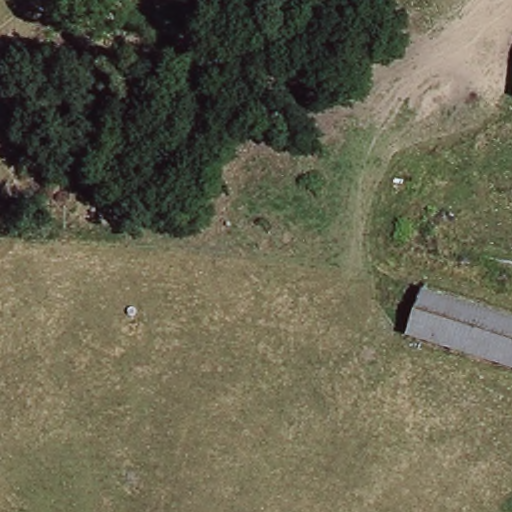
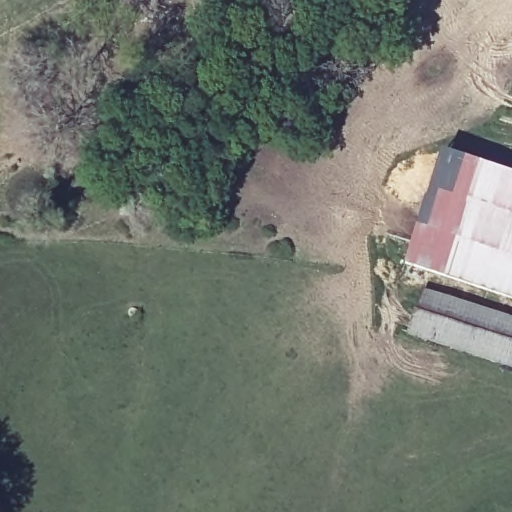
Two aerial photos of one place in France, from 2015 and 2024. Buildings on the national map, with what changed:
new [(512,174),(512,299),(403,262),(441,150),(512,174)]
unchanged [(426,296),(512,322),(512,369),(414,340),(426,296)]

